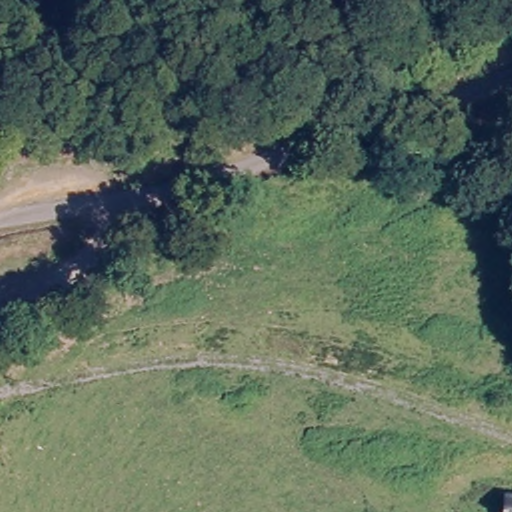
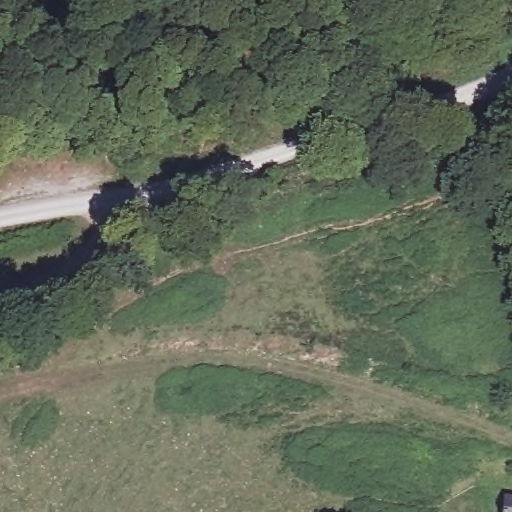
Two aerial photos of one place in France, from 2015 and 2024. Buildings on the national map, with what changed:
unchanged [(500,503),(512,504),(512,512),(499,512),(500,503)]

